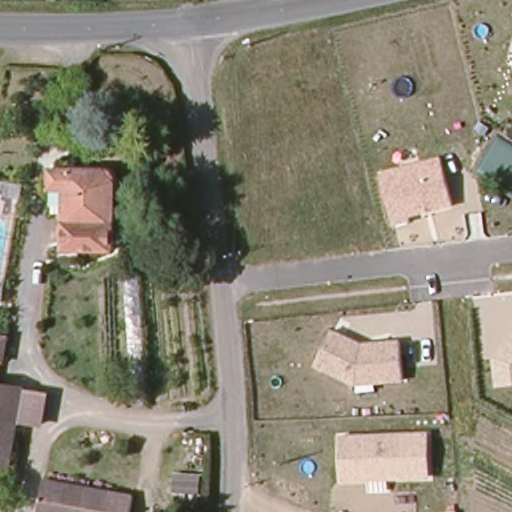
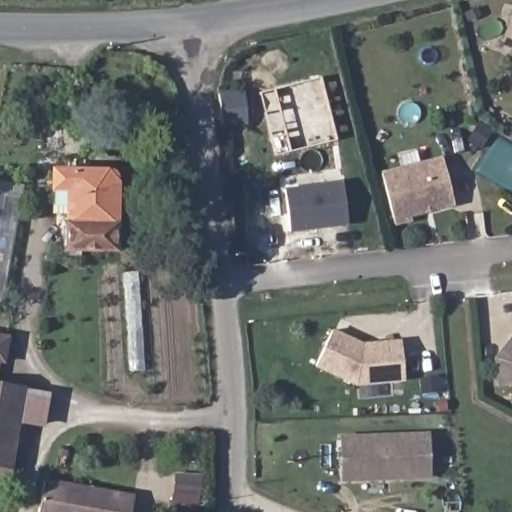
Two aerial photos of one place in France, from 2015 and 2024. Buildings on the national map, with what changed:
unchanged [(412,221),(395,225),(380,172),(442,156),(455,205),(411,217),(412,221)]
unchanged [(67,245),(67,206),(51,206),(52,169),(116,169),(117,245),(67,245)]
unchanged [(0,267),(0,260),(14,261),(19,215),(0,212),(0,179),(29,184),(16,270),(0,267)]
new [(345,179),(350,221),(291,228),(286,186),(345,179)]
unchanged [(406,383),(358,388),(313,369),(332,330),(363,343),(401,340),(406,383)]
unchanged [(492,361),(512,333),(512,387),(495,389),(492,361)]
unchanged [(5,367),(0,367),(0,341),(8,342),(5,367)]
unchanged [(27,393),(14,472),(0,470),(0,389),(27,393)]
unchanged [(340,481),(338,435),(429,431),(431,477),(340,481)]
unchanged [(43,510),(48,476),(141,493),(137,512),(42,512),(43,510)]

